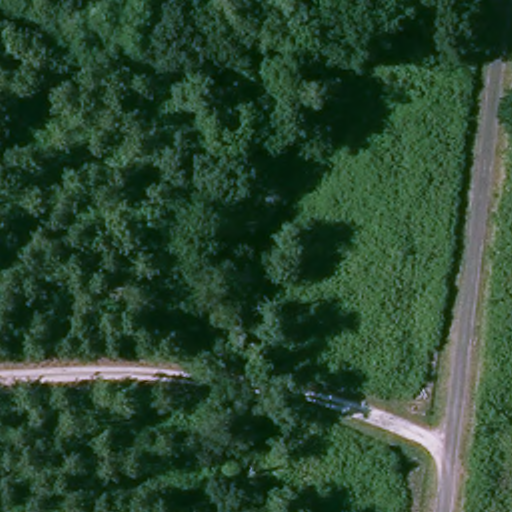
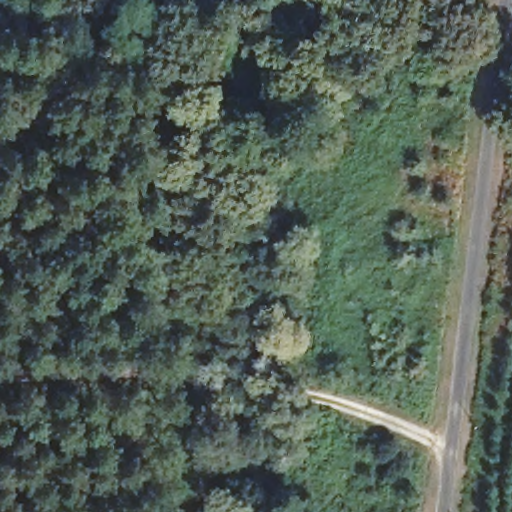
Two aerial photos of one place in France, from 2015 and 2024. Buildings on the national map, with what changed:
[]

